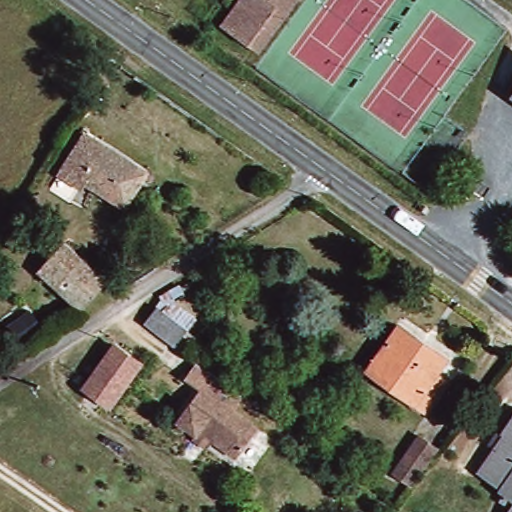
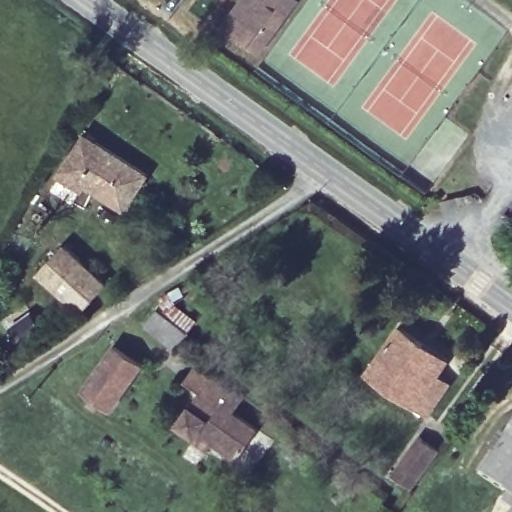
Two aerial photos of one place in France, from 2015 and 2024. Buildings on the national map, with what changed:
unchanged [(257,52),(222,27),(241,0),(295,0),(257,52)]
unchanged [(512,94),(512,98),(510,97),(512,94)]
unchanged [(123,210),(83,184),(80,190),(58,175),(78,144),(84,137),(92,142),(145,177),(123,210)]
unchanged [(103,284),(78,312),(37,272),(63,245),(103,284)]
unchanged [(165,302),(162,296),(183,285),(185,288),(195,282),(197,287),(187,292),(188,295),(178,301),(201,320),(192,332),(199,339),(192,347),(182,340),(175,348),(147,325),(165,302)]
unchanged [(37,328),(14,342),(3,324),(25,311),(37,328)]
unchanged [(449,385),(427,413),(367,371),(401,326),(422,341),(447,359),(443,365),(435,375),(449,385)]
unchanged [(88,387),(120,347),(145,367),(113,408),(88,387)]
unchanged [(196,437),(178,423),(201,392),(187,381),(198,365),(246,400),(233,417),(257,433),(237,459),(215,442),(205,453),(192,442),(196,437)]
unchanged [(512,424),(512,496),(478,474),(512,424)]
unchanged [(398,466),(415,441),(438,457),(420,481),(398,466)]

